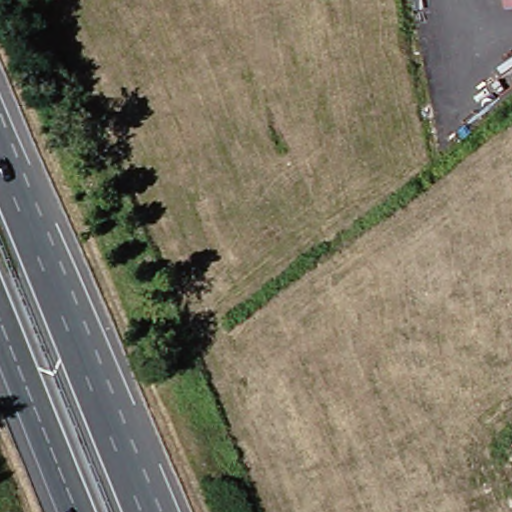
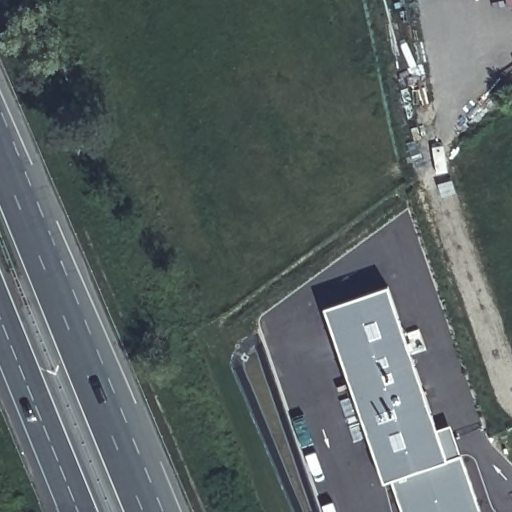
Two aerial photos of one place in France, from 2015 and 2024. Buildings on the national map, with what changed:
new [(384,481),(325,310),(388,289),(434,429),(450,424),(480,512),(402,512),(391,479),(384,481)]

